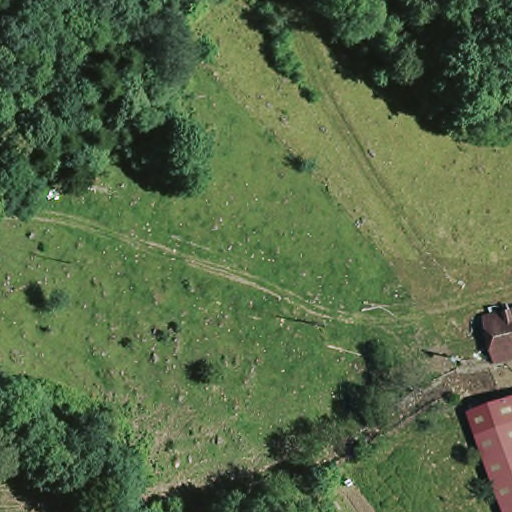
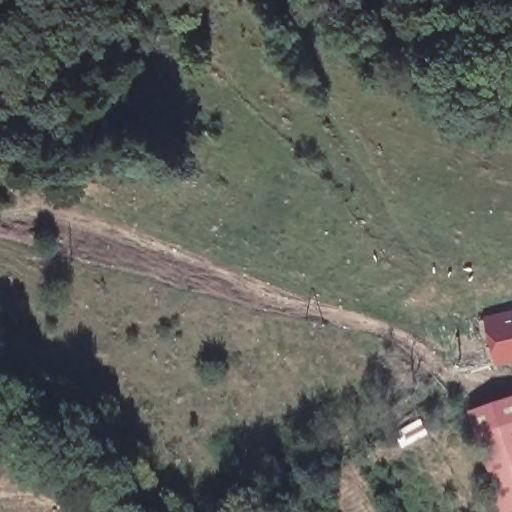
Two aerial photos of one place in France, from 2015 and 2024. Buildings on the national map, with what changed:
unchanged [(484,314),(512,308),(512,355),(496,358),(484,314)]
unchanged [(477,427),(512,416),(512,468),(492,473),(477,427)]
unchanged [(512,468),(512,512),(505,512),(492,473),(512,468)]

